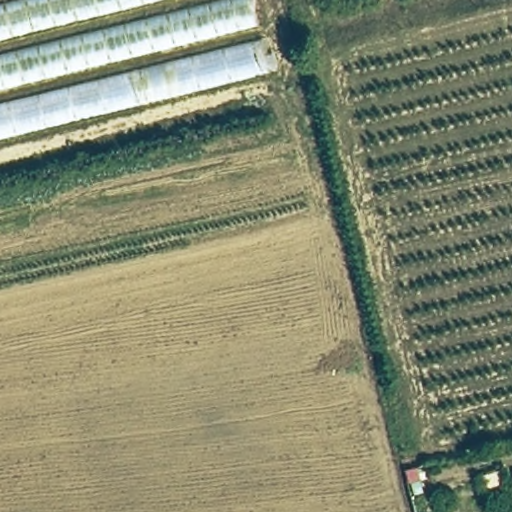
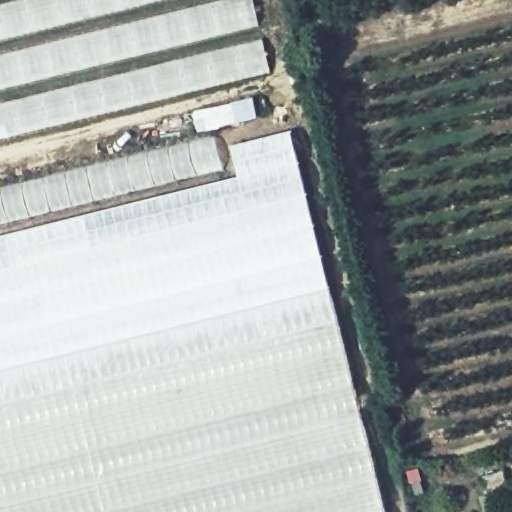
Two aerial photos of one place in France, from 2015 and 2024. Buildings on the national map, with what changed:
unchanged [(0,142),(0,0),(261,0),(278,73),(0,142)]
new [(200,133),(195,113),(255,99),(260,119),(200,133)]
new [(0,207),(290,136),(387,512),(0,512),(0,207)]

